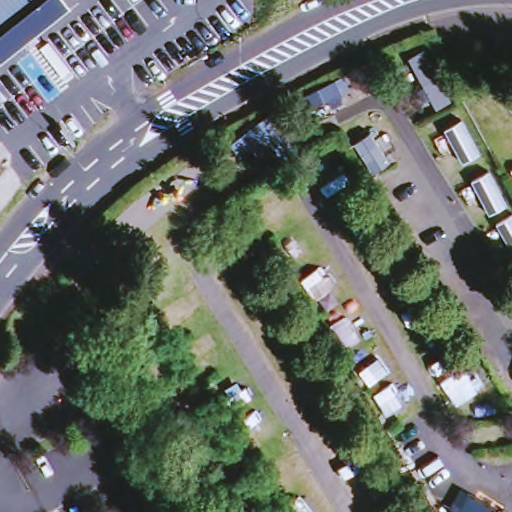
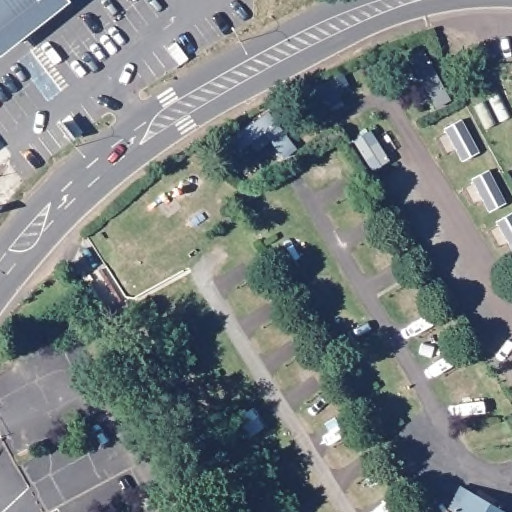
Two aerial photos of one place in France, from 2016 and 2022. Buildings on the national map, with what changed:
unchanged [(0,27),(0,0),(33,0),(0,27)]
unchanged [(220,135),(264,109),(288,149),(273,157),(260,135),(234,151),(220,135)]
unchanged [(445,502),(455,508),(462,495),(490,512),(441,512),(440,511),(445,502)]

